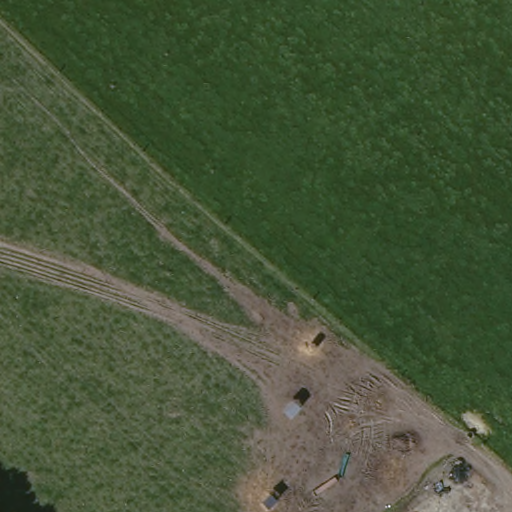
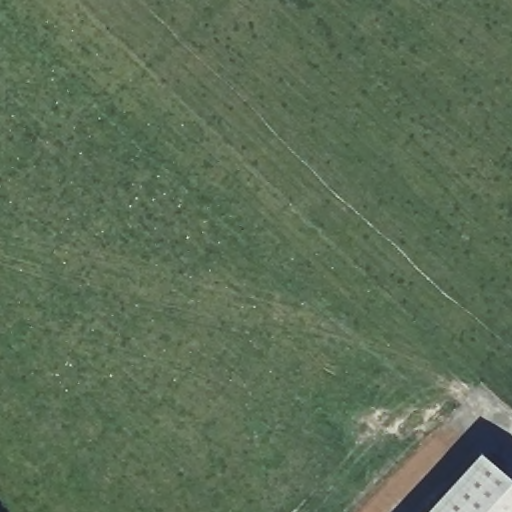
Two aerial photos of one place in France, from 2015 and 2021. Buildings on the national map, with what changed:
new [(476,459),(504,483),(475,512),(429,512),(476,459)]
new [(504,483),(512,491),(512,512),(475,512),(504,483)]

